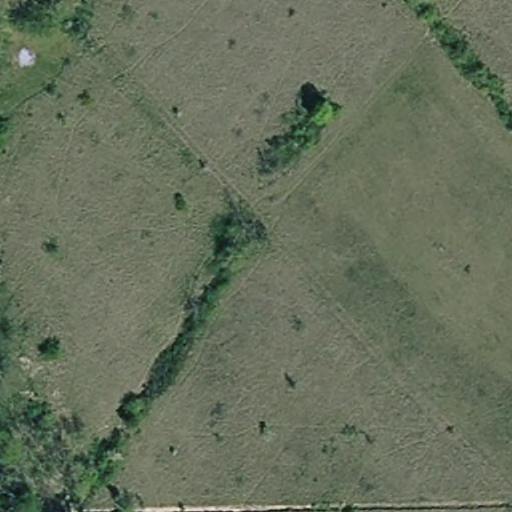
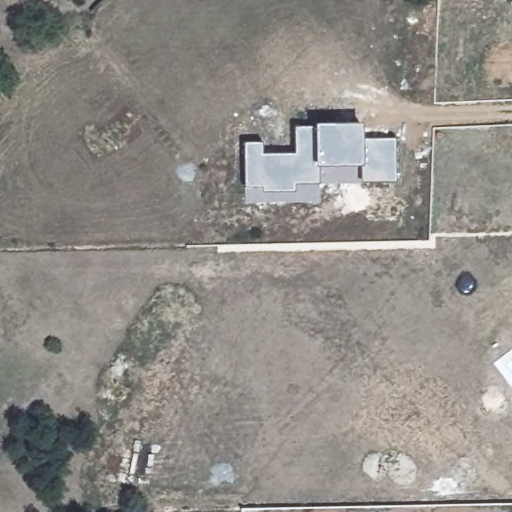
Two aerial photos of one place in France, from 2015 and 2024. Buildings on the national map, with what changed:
new [(363,182),(363,166),(320,168),(321,184),(296,184),(296,192),(263,194),(263,186),(246,187),(246,143),(263,143),(263,155),(297,155),(296,128),(318,127),(318,125),(364,125),(364,140),(395,139),(397,182),(363,182)]

